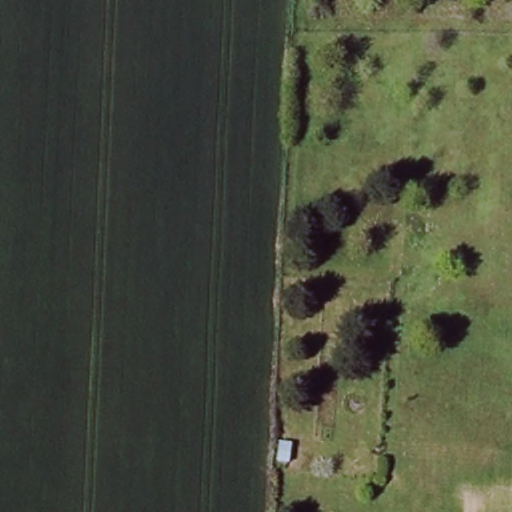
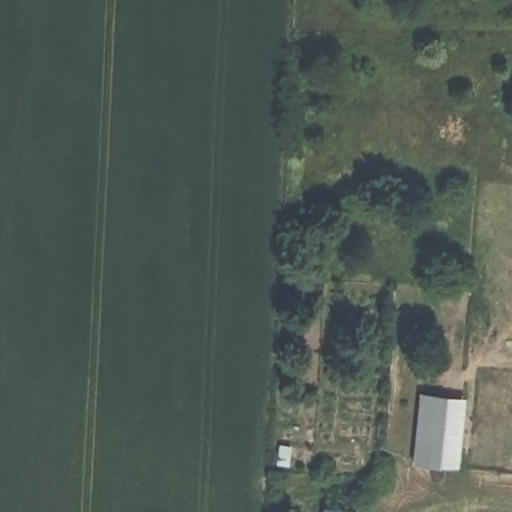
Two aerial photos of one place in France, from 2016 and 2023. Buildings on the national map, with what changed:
new [(412,461),(419,391),(467,396),(460,466),(412,461)]
new [(322,512),(322,504),(358,506),(357,512),(322,512)]

